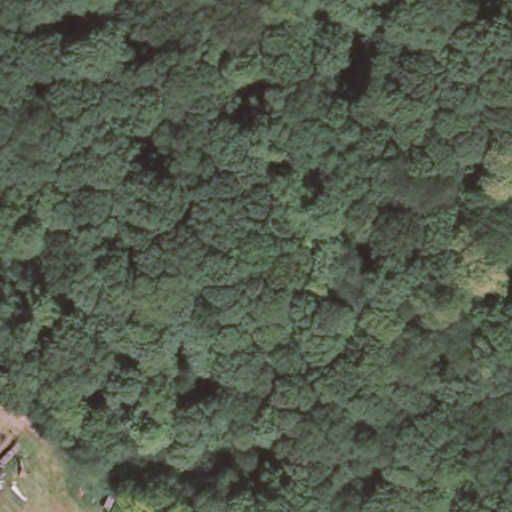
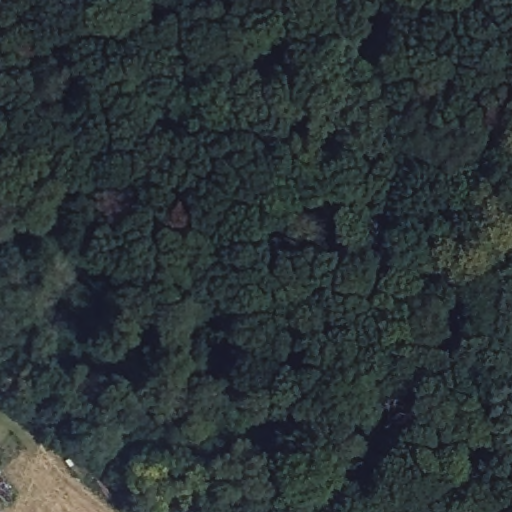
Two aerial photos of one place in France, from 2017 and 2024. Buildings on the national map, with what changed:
[]

